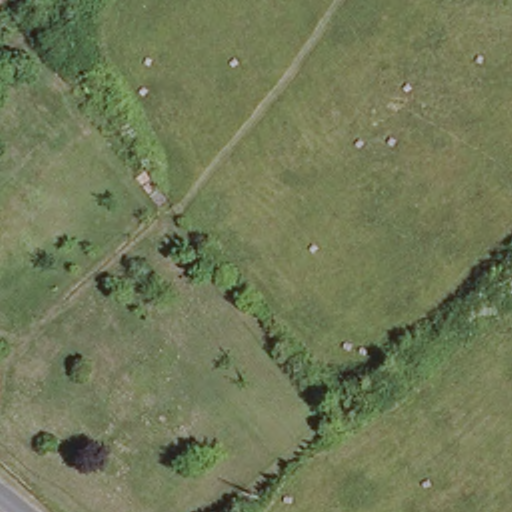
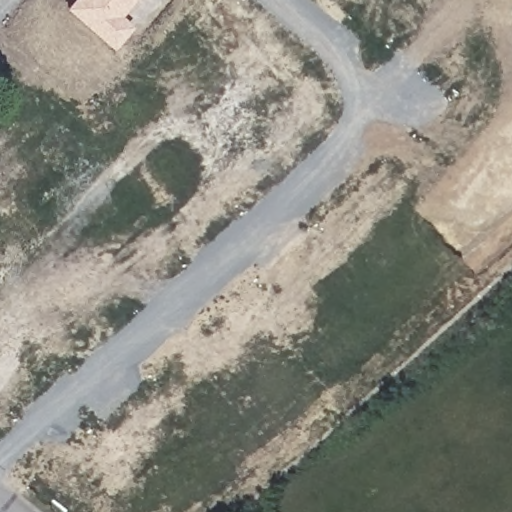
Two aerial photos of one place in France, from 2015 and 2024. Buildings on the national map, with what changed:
new [(113,50),(65,7),(71,0),(135,0),(121,15),(134,26),(113,50)]

